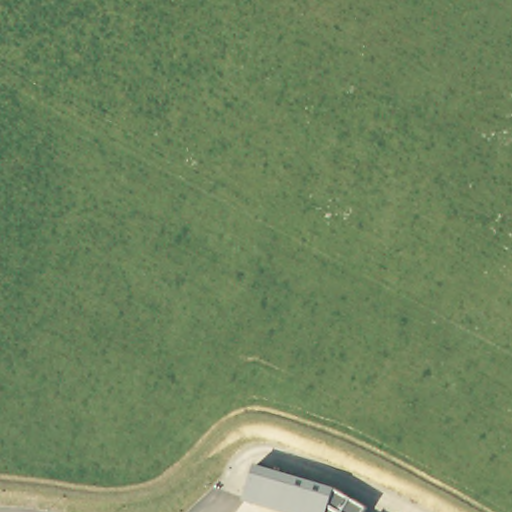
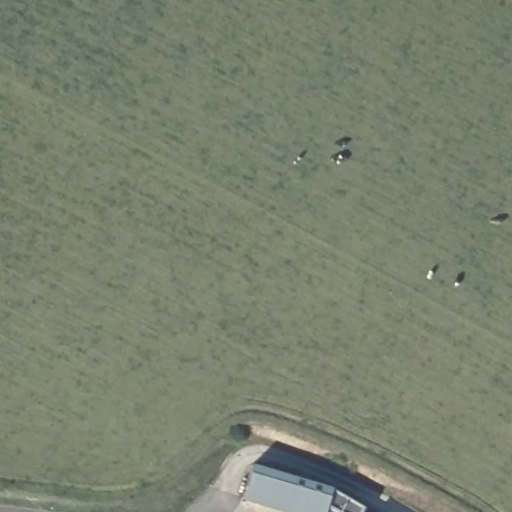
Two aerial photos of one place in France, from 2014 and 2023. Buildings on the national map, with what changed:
unchanged [(253,464),(333,487),(367,509),(365,512),(284,512),(243,500),(253,464)]

